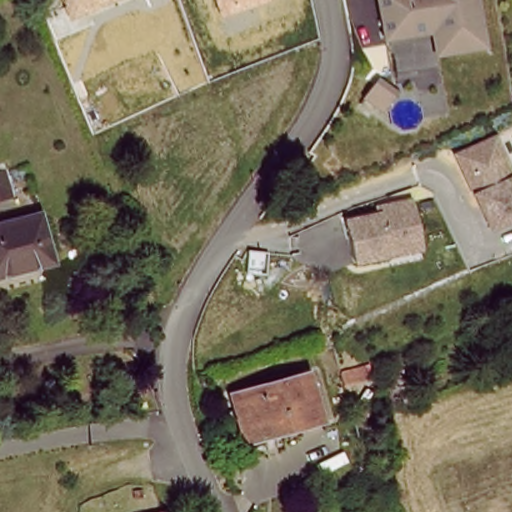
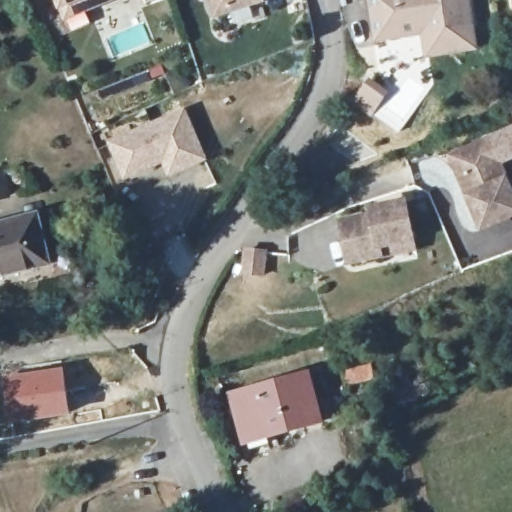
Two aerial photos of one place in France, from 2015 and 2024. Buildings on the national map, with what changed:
unchanged [(58,0),(120,0),(67,20),(58,0)]
unchanged [(210,0),(266,0),(266,2),(217,19),(210,0)]
unchanged [(475,52),(418,59),(416,42),(371,46),(364,0),(468,0),(475,52)]
unchanged [(512,3),(511,1),(511,0),(512,0),(512,3)]
new [(185,109),(209,162),(169,179),(164,165),(127,182),(108,143),(185,109)]
unchanged [(512,195),(512,219),(479,233),(460,194),(441,158),(487,140),(504,177),(512,195)]
unchanged [(367,216),(365,207),(400,201),(412,256),(348,270),(337,222),(367,216)]
unchanged [(36,217),(50,263),(0,279),(0,228),(36,217)]
new [(244,250),(264,252),(262,274),(242,272),(244,250)]
new [(63,365),(71,414),(6,424),(0,385),(0,375),(63,365)]
unchanged [(308,366),(326,415),(252,444),(234,397),(308,366)]
unchanged [(174,512),(153,512),(170,504),(174,512)]

